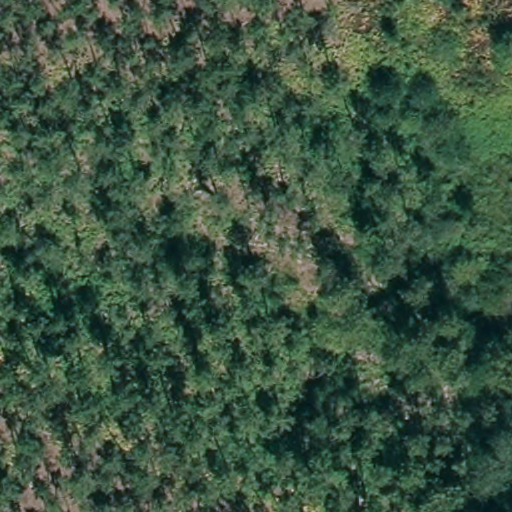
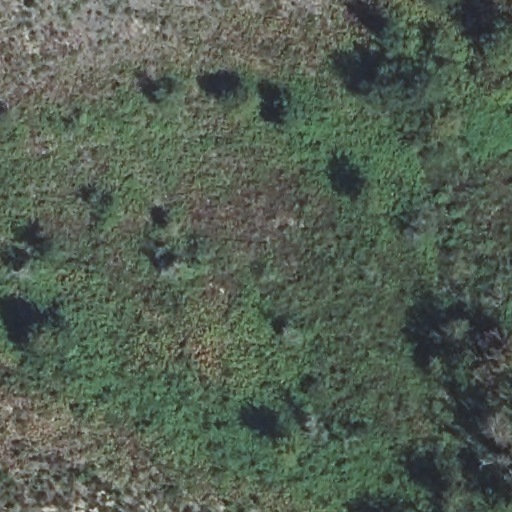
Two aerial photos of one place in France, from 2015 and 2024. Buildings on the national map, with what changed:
[]

